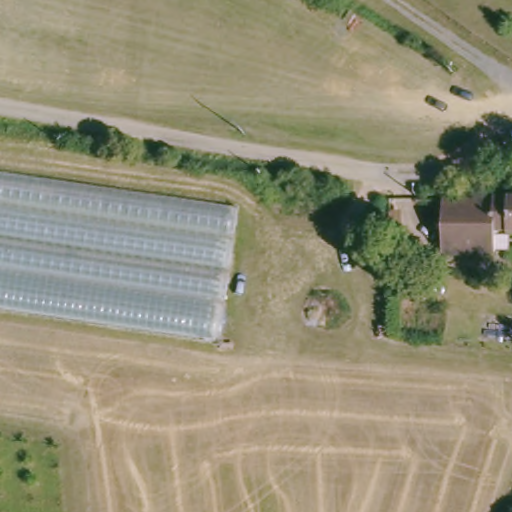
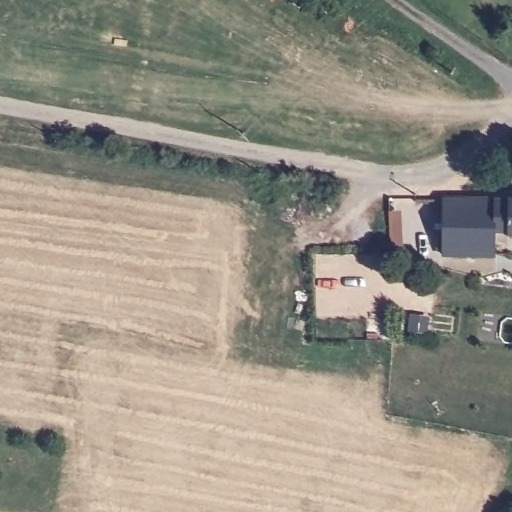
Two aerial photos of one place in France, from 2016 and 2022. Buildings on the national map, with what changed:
demolished [(218,335),(0,305),(0,169),(237,205),(218,335)]
unchanged [(492,225),(491,247),(439,250),(439,194),(493,192),(512,192),(512,225),(492,225)]

